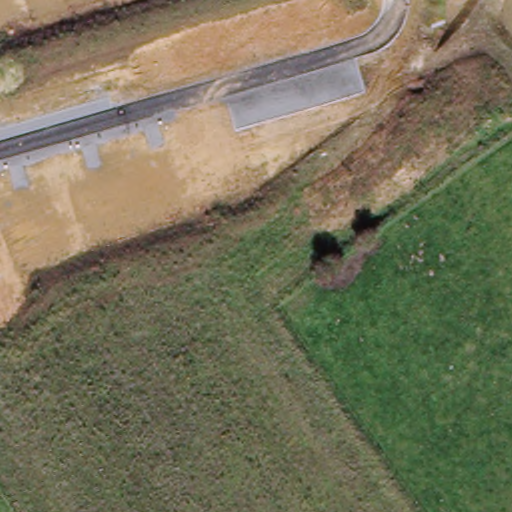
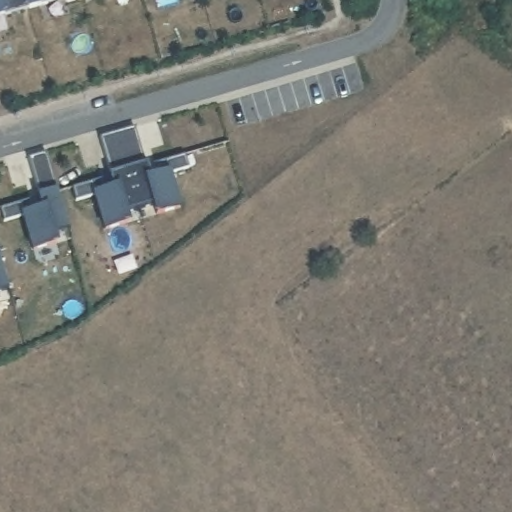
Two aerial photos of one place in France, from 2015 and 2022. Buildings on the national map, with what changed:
new [(26,11),(24,5),(4,11),(6,18),(0,19),(0,0),(59,0),(60,1),(26,11)]
new [(147,163),(184,154),(188,167),(170,171),(183,208),(155,216),(151,203),(125,212),(128,225),(104,233),(92,194),(75,200),(72,188),(109,175),(114,173),(101,136),(134,126),(147,163)]
new [(56,189),(69,229),(55,233),(58,246),(33,254),(20,214),(4,221),(1,210),(37,195),(40,194),(29,156),(45,150),(56,189)]
new [(9,291),(0,292),(0,263),(9,291)]

